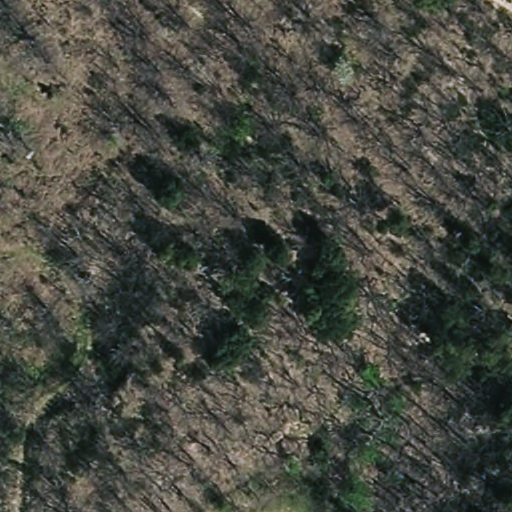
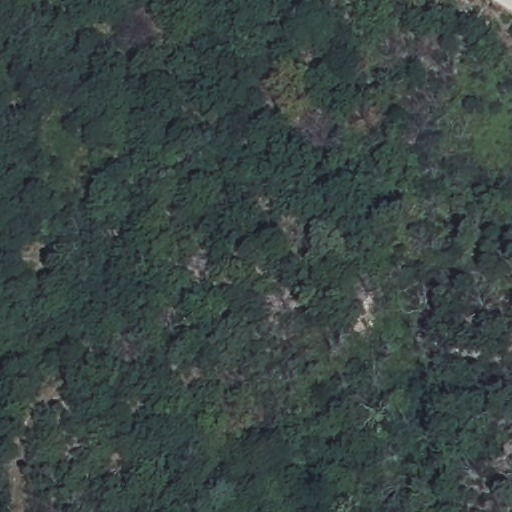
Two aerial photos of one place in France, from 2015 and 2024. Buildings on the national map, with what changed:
[]

